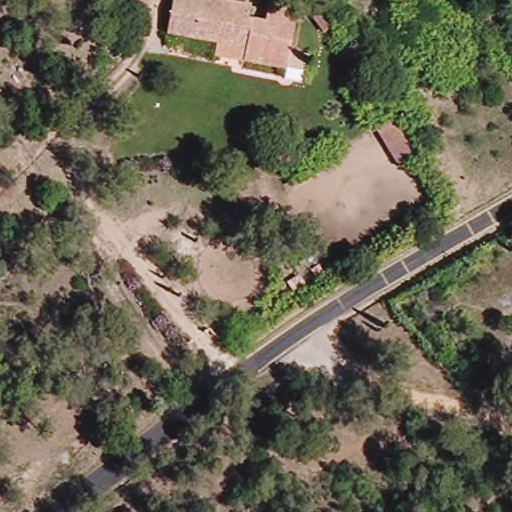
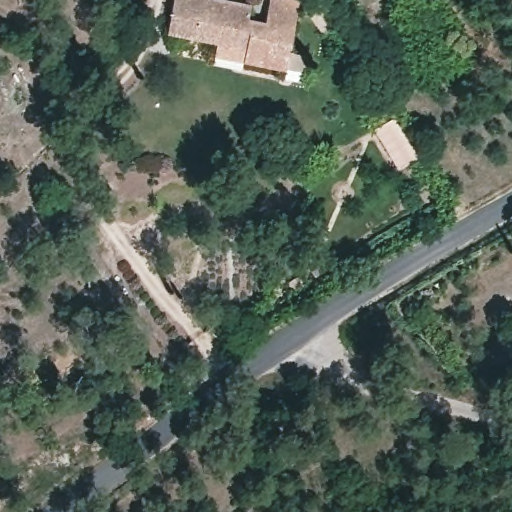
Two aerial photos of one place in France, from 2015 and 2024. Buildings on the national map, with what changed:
unchanged [(168,34),(175,0),(216,0),(250,6),(248,20),(265,23),(269,0),(291,0),(297,1),(284,70),(243,62),(215,57),(217,43),(168,34)]
unchanged [(321,8),(335,25),(324,34),(310,16),(321,8)]
unchanged [(417,156),(404,164),(380,127),(393,119),(417,156)]

